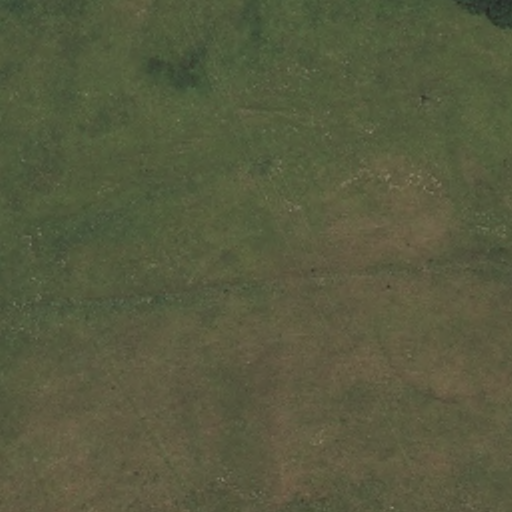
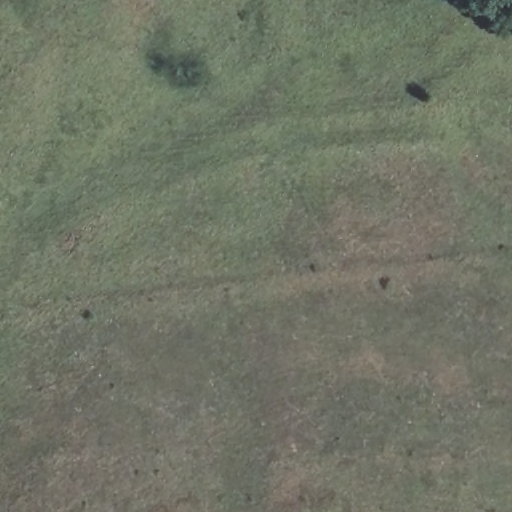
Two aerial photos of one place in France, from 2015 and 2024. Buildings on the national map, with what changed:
[]

